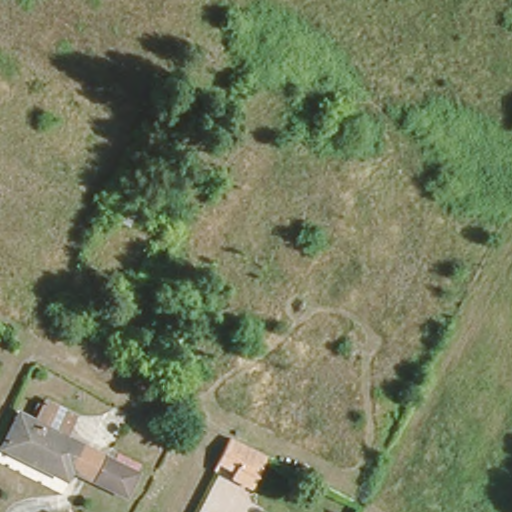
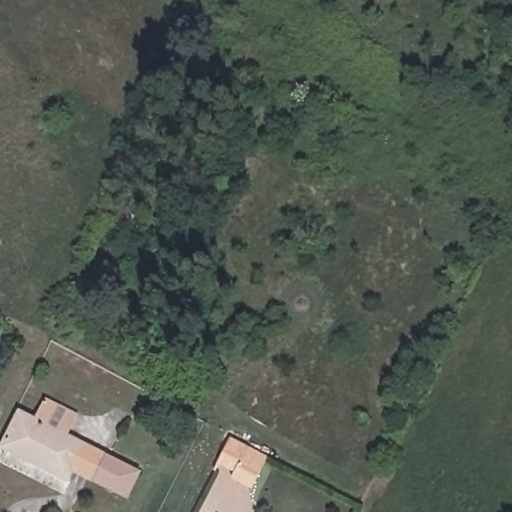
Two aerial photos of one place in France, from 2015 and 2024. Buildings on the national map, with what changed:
unchanged [(34,414),(45,396),(75,410),(65,432),(147,464),(128,497),(72,469),(64,480),(0,447),(0,441),(14,406),(34,414)]
unchanged [(264,453),(247,484),(215,467),(232,437),(264,453)]

